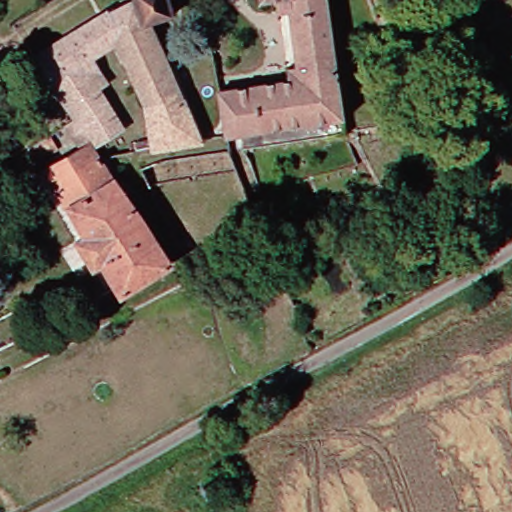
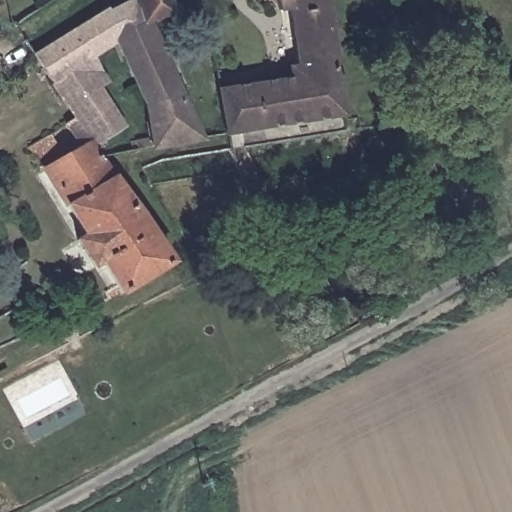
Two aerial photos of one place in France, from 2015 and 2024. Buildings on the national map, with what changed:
unchanged [(109,11),(111,15),(139,3),(138,0),(173,0),(177,15),(152,22),(204,138),(158,145),(153,106),(150,107),(121,41),(85,64),(127,130),(99,149),(120,180),(118,181),(174,265),(123,295),(105,265),(96,270),(79,241),(88,236),(49,171),(86,148),(70,123),(77,117),(44,66),(39,56),(109,11)]
unchanged [(293,79),(281,0),(331,0),(347,115),(231,135),(223,91),(293,79)]
unchanged [(39,151),(32,138),(55,125),(62,136),(39,151)]

